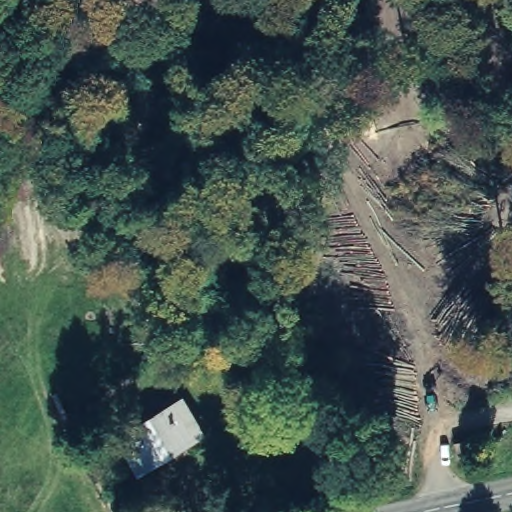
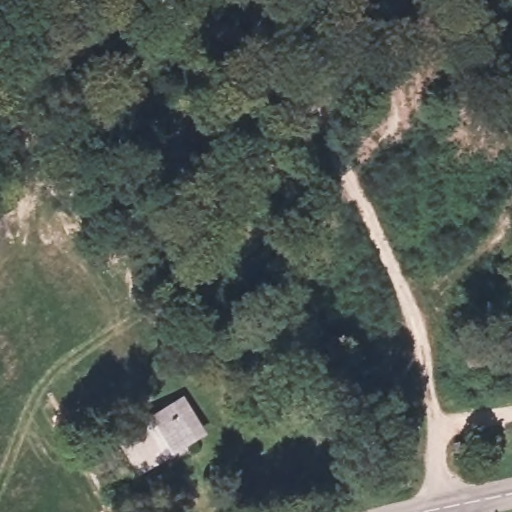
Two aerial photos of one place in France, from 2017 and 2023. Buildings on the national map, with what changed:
unchanged [(203,428),(188,437),(195,448),(165,464),(157,452),(140,462),(122,433),(181,398),(203,428)]

